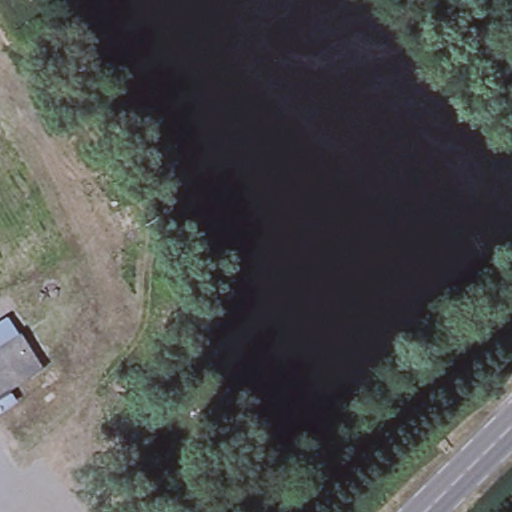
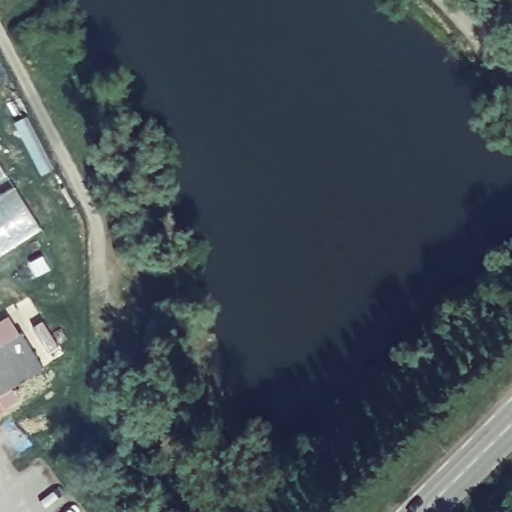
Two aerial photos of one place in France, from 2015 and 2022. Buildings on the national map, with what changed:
new [(5,175),(0,178),(0,166),(5,175)]
new [(17,187),(41,228),(0,254),(0,198),(17,187)]
unchanged [(43,365),(11,385),(18,398),(0,411),(0,313),(7,308),(43,365)]

